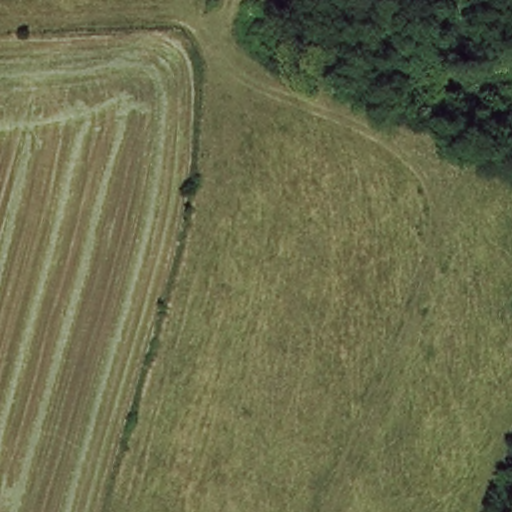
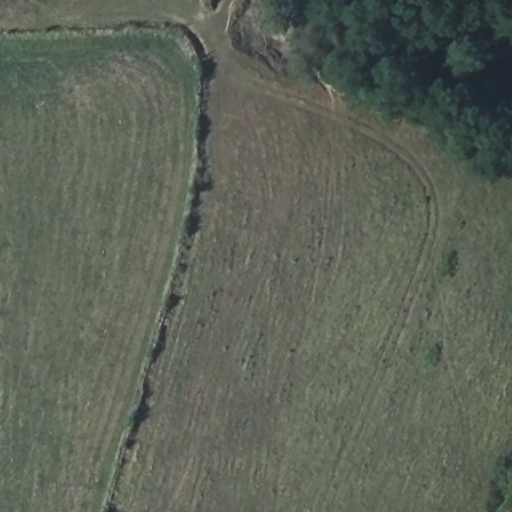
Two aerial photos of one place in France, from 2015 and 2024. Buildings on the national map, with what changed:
[]

